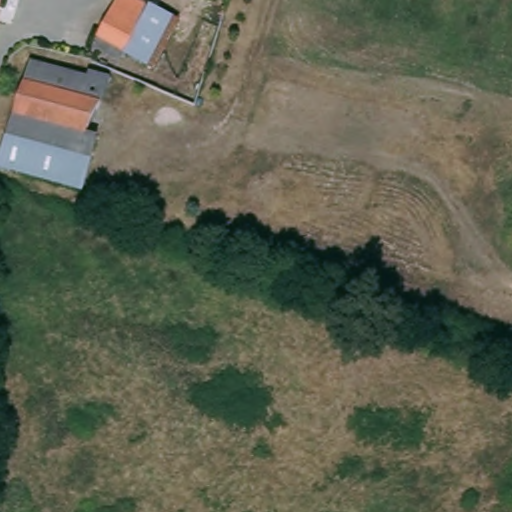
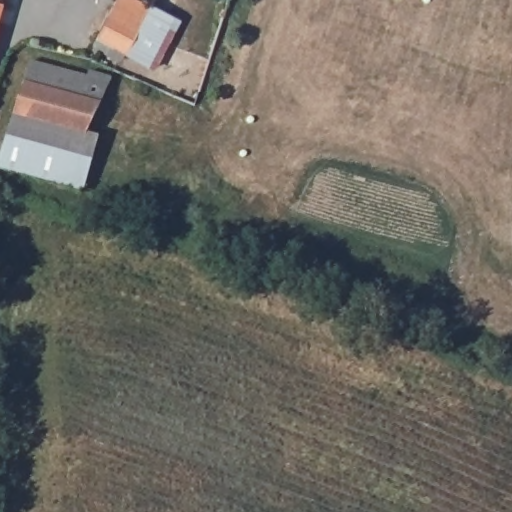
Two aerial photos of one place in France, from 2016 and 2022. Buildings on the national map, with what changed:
unchanged [(0,23),(0,0),(7,0),(0,23)]
unchanged [(95,44),(116,0),(144,0),(151,4),(135,37),(128,51),(124,58),(95,44)]
unchanged [(175,15),(152,63),(128,51),(135,37),(151,4),(175,15)]
unchanged [(16,114),(33,62),(86,80),(88,72),(109,81),(85,136),(16,114)]
unchanged [(1,166),(14,123),(16,114),(85,136),(94,140),(78,191),(69,189),(1,166)]

